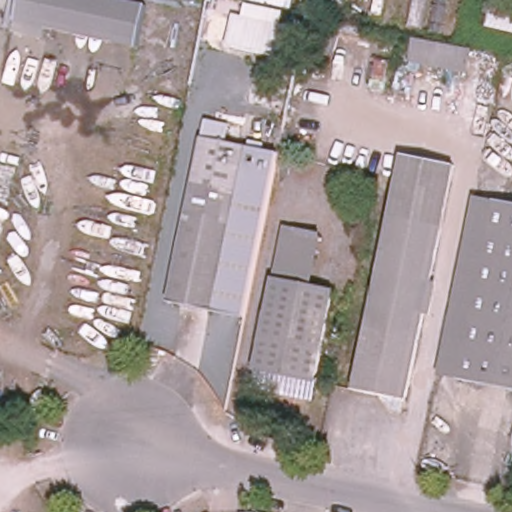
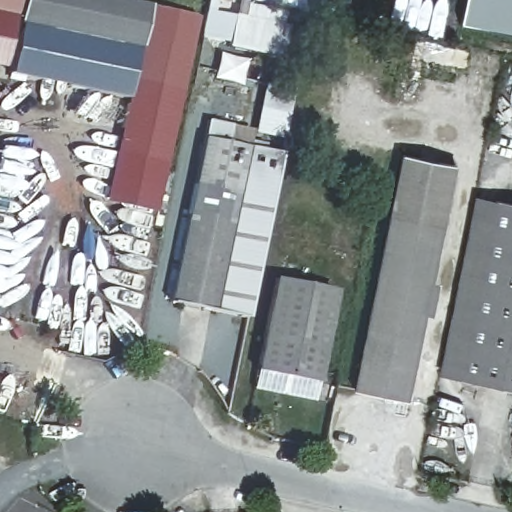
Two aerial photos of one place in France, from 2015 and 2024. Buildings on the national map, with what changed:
new [(16,0),(12,15),(0,13),(0,0),(16,0)]
unchanged [(121,0),(146,5),(137,46),(135,46),(49,27),(17,20),(22,0),(121,0)]
unchanged [(252,0),(311,0),(308,11),(252,0)]
new [(512,0),(512,33),(460,23),(465,0),(512,0)]
new [(155,211),(102,198),(124,98),(135,46),(137,46),(146,5),(152,6),(135,79),(181,89),(155,211)]
new [(181,89),(135,79),(152,6),(199,16),(181,89)]
new [(12,15),(0,67),(0,13),(12,15)]
unchanged [(281,57),(227,46),(234,13),(287,25),(281,57)]
new [(17,20),(49,27),(135,46),(124,98),(6,72),(17,20)]
unchanged [(405,65),(410,36),(471,47),(466,76),(405,65)]
unchanged [(212,311),(167,302),(202,136),(247,145),(212,311)]
new [(247,145),(280,152),(246,318),(212,311),(247,145)]
unchanged [(402,152),(456,163),(407,401),(353,390),(402,152)]
unchanged [(457,379),(438,375),(460,267),(475,195),(493,199),(457,379)]
unchanged [(493,199),(512,203),(512,390),(457,379),(493,199)]
unchanged [(322,235),(315,292),(275,283),(287,227),(322,235)]
unchanged [(315,386),(255,373),(275,283),(315,292),(334,296),(315,386)]

